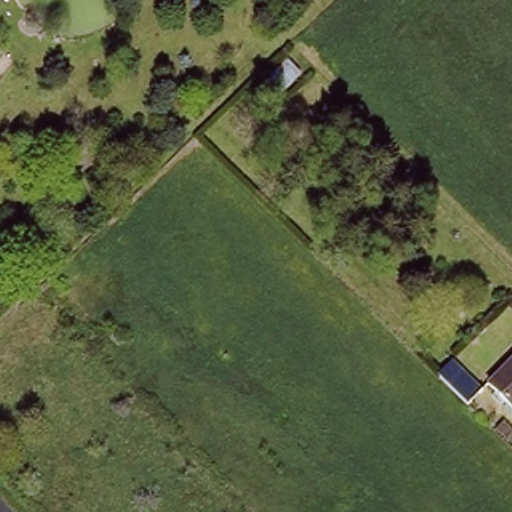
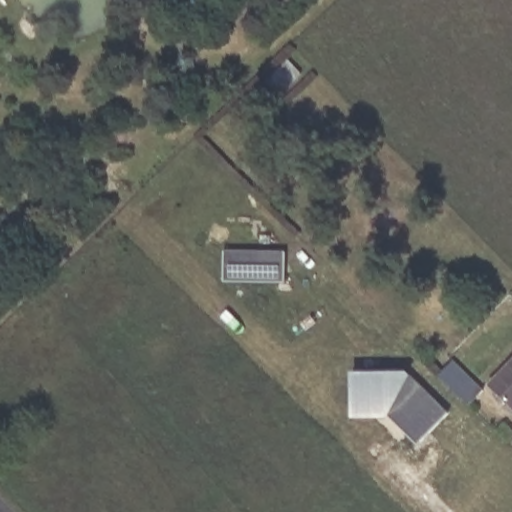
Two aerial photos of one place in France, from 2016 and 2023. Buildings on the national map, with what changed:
new [(222,251),(283,252),(283,284),(223,283),(222,251)]
unchanged [(483,378),(512,346),(512,401),(511,403),(483,378)]
unchanged [(465,398),(456,389),(435,369),(447,355),(468,376),(478,384),(465,398)]
new [(407,372),(410,375),(448,413),(415,444),(389,418),(350,418),(350,373),(407,372)]

